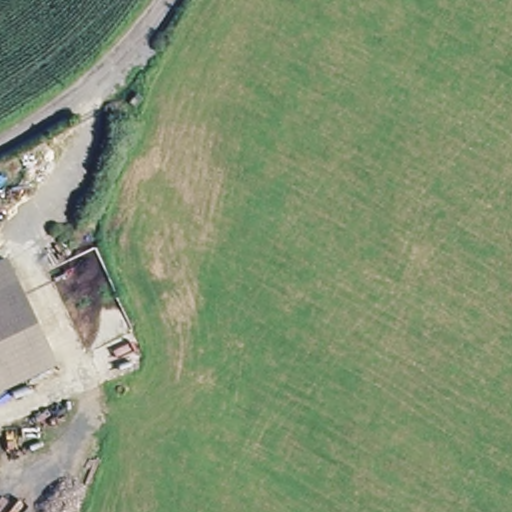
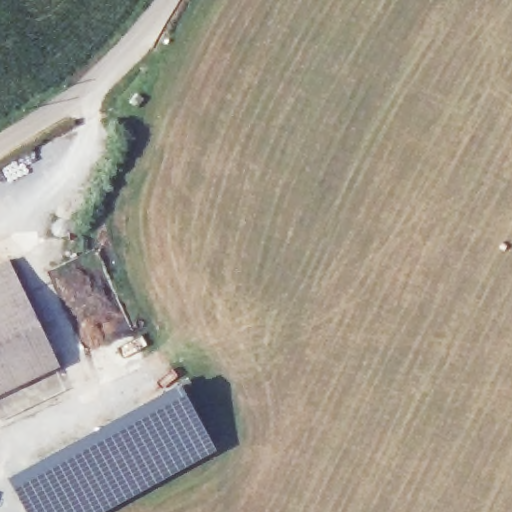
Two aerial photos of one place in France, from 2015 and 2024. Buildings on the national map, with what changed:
unchanged [(56,368),(0,393),(0,262),(8,258),(56,368)]
new [(99,512),(27,512),(13,486),(184,391),(215,448),(99,512)]

